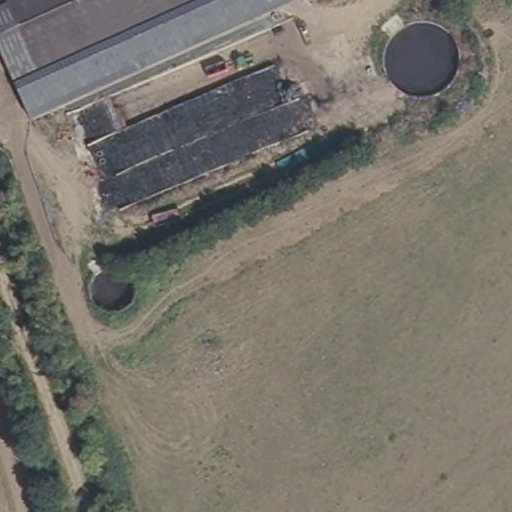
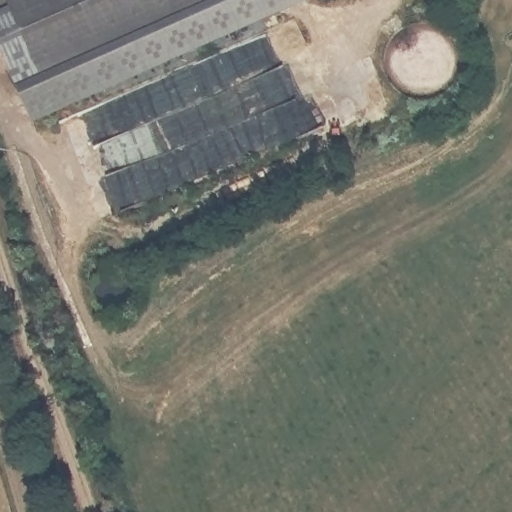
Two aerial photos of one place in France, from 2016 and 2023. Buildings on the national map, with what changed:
unchanged [(32,127),(18,94),(0,52),(0,0),(323,0),(32,127)]

